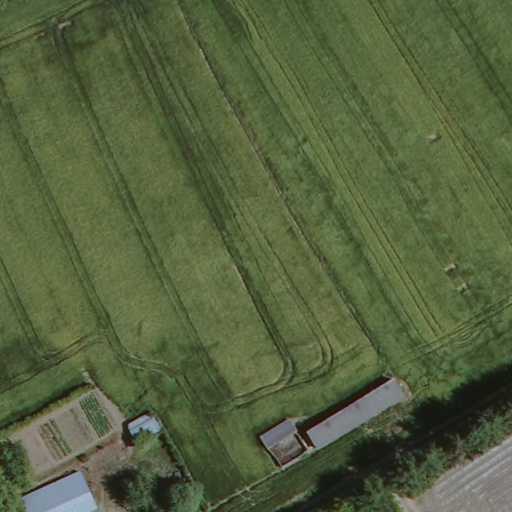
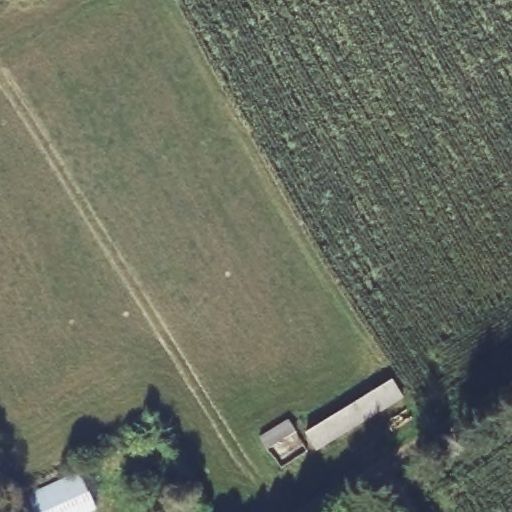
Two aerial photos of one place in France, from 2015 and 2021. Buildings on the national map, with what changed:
unchanged [(402,375),(415,394),(320,454),(309,438),(402,375)]
unchanged [(161,419),(169,433),(148,445),(145,437),(141,429),(161,419)]
unchanged [(293,419),(301,432),(276,446),(267,434),(293,419)]
unchanged [(88,476),(100,512),(32,512),(27,495),(88,476)]

